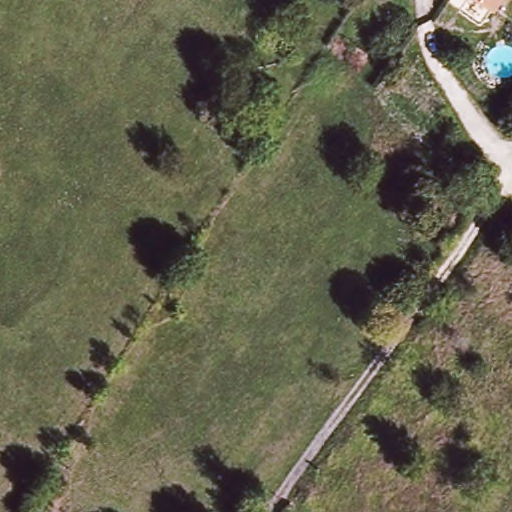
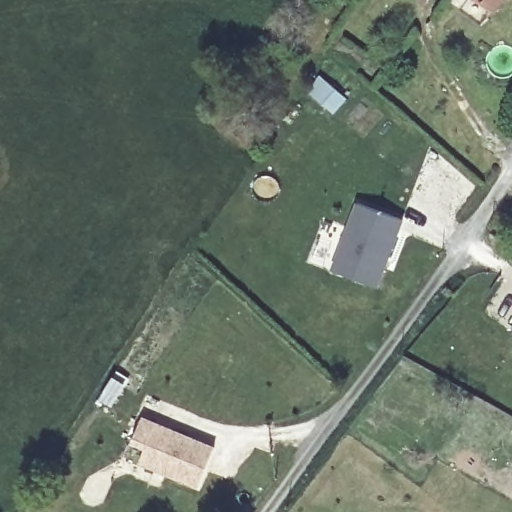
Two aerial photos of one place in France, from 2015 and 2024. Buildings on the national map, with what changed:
unchanged [(500,13),(481,0),(509,0),(500,13)]
new [(359,203),(404,220),(380,288),(335,272),(359,203)]
new [(145,417),(217,448),(200,487),(142,462),(148,448),(134,442),(145,417)]

